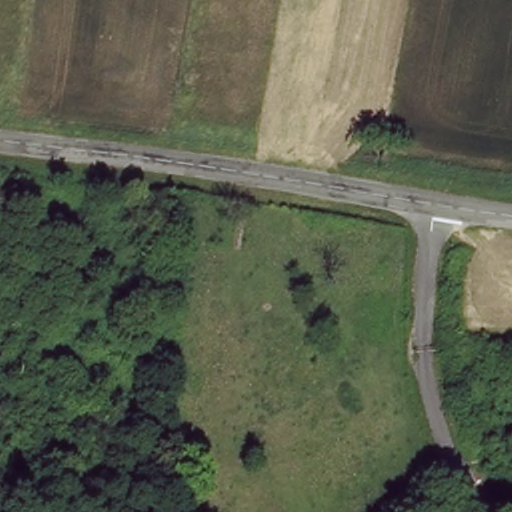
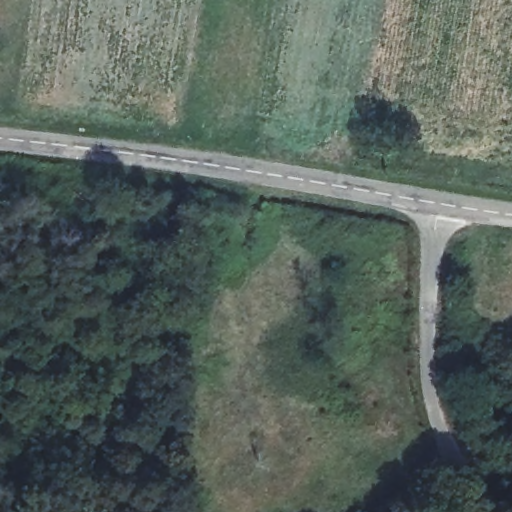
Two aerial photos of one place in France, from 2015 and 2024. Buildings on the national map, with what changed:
[]

